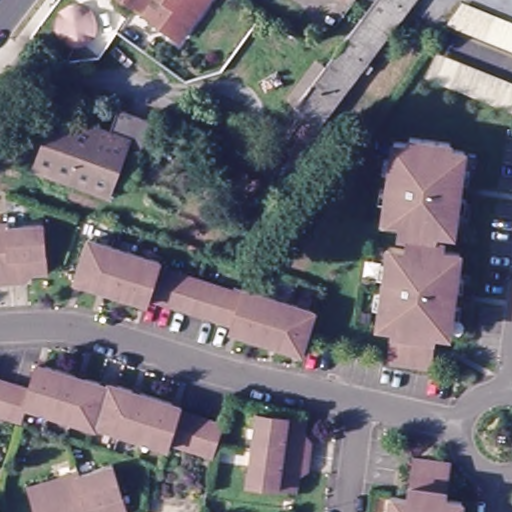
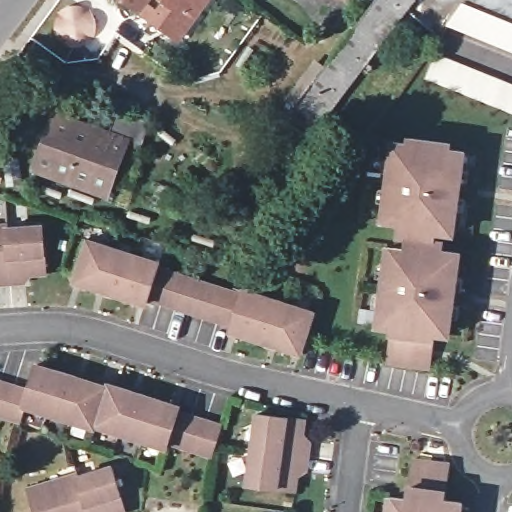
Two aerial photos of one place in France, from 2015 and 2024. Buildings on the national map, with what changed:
unchanged [(141,0),(206,0),(183,31),(141,0)]
unchanged [(403,16),(385,4),(387,0),(415,0),(403,16)]
unchanged [(446,22),(462,0),(471,0),(512,16),(512,49),(446,22)]
unchanged [(403,16),(319,128),(300,114),(330,73),(332,75),(363,32),(385,4),(403,16)]
unchanged [(87,32),(84,40),(78,45),(73,47),(64,47),(56,42),(51,36),(50,32),(50,25),(51,20),(55,15),(61,11),(69,10),(75,11),(82,15),(86,22),(87,28),(87,32)]
unchanged [(512,85),(512,113),(425,78),(435,53),(512,85)]
unchanged [(112,201),(38,175),(54,127),(109,147),(119,122),(153,133),(157,135),(148,161),(143,159),(129,154),(112,201)]
unchanged [(454,238),(439,236),(438,242),(445,244),(444,254),(462,257),(450,337),(436,336),(430,371),(389,365),(393,330),(384,328),(393,248),(409,250),(410,237),(401,236),(401,226),(386,222),(394,146),(410,148),(410,143),(450,147),(449,153),(466,156),(454,238)]
unchanged [(13,278),(0,279),(0,223),(5,222),(6,225),(13,278)]
unchanged [(6,225),(41,222),(47,267),(46,267),(32,270),(25,271),(25,278),(13,278),(6,225)]
unchanged [(88,242),(112,250),(99,290),(75,281),(76,276),(88,242)]
unchanged [(136,257),(123,298),(99,290),(112,250),(136,257)]
unchanged [(268,300),(255,340),(232,332),(233,327),(219,323),(205,318),(191,314),(177,310),(162,306),(149,301),(147,305),(123,298),(136,257),(173,269),(173,273),(187,278),(201,282),(216,287),(229,292),(242,296),(243,292),(268,300)]
unchanged [(255,340),(268,300),(292,307),(279,347),(255,340)]
unchanged [(279,347),(292,307),(315,316),(302,355),(279,347)]
unchanged [(26,387),(34,362),(57,369),(45,407),(21,401),(15,417),(4,415),(0,413),(0,378),(14,383),(26,387)]
unchanged [(45,407),(57,369),(81,376),(69,415),(45,407)]
unchanged [(195,445),(181,440),(166,436),(165,439),(141,433),(117,426),(94,418),(92,422),(69,415),(81,376),(105,384),(106,381),(129,388),(153,395),(177,403),(176,408),(189,412),(204,416),(218,421),(212,440),(209,448),(195,445)]
unchanged [(302,437),(300,443),(304,444),(303,457),(251,450),(255,416),(303,423),(302,437)]
unchanged [(301,471),(297,471),(296,477),(294,492),(246,483),(251,450),(303,457),(301,471)]
unchanged [(113,466),(126,511),(123,512),(91,512),(80,476),(113,466)]
unchanged [(458,508),(457,512),(386,512),(388,504),(406,507),(411,466),(442,470),(437,505),(458,508)]
unchanged [(78,470),(80,476),(91,512),(37,512),(29,484),(78,470)]

